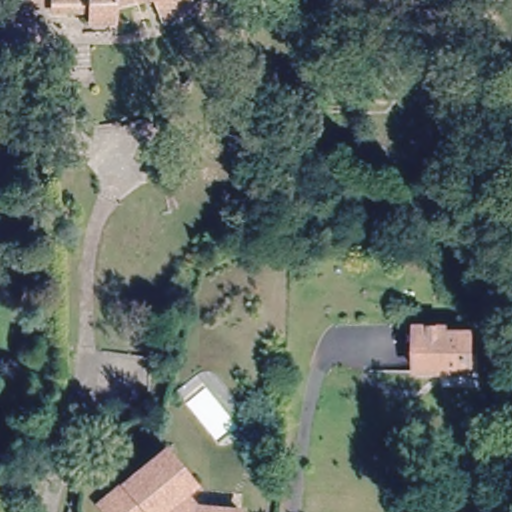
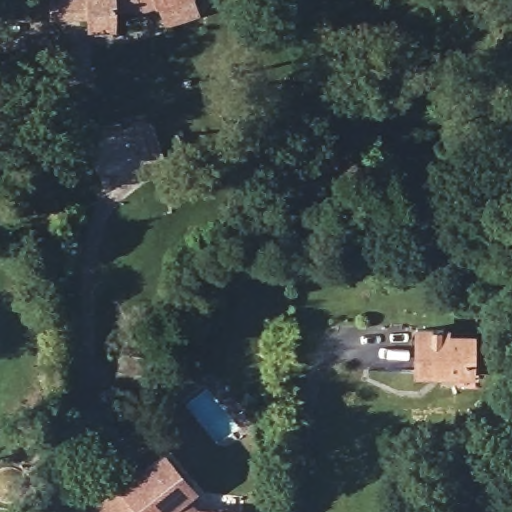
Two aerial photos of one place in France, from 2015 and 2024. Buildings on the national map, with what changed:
unchanged [(86,11),(51,11),(51,8),(6,8),(5,0),(133,0),(114,6),(114,10),(115,25),(87,26),(86,11)]
unchanged [(165,19),(158,0),(194,0),(197,8),(165,19)]
unchanged [(417,368),(418,324),(445,324),(445,329),(469,330),(468,369),(417,368)]
unchanged [(95,509),(155,455),(184,487),(175,496),(187,509),(236,510),(236,512),(97,512),(95,509)]

